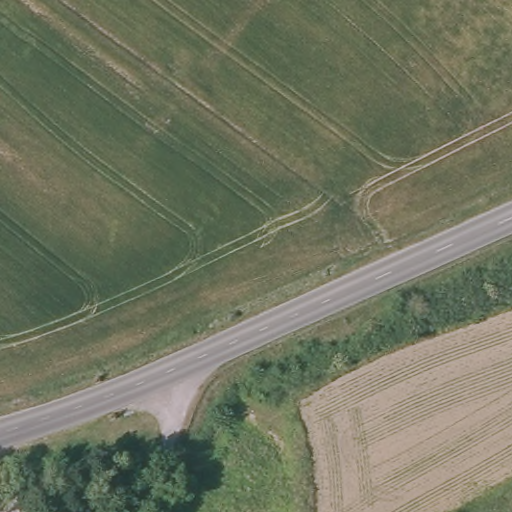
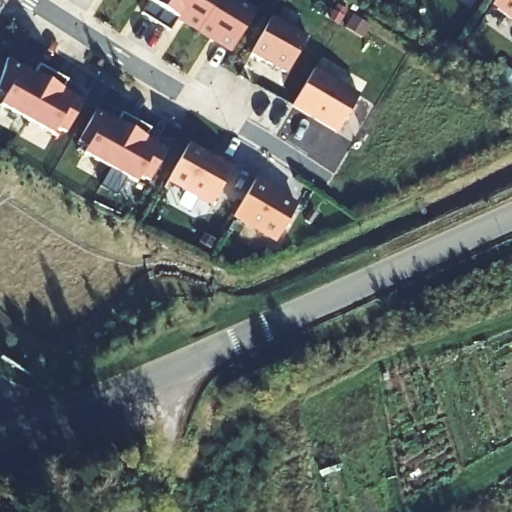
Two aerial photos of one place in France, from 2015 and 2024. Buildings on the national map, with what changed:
new [(259,15),(233,55),(180,22),(172,35),(144,17),(152,4),(146,0),(235,0),(259,15)]
new [(512,19),(496,7),(501,0),(512,0),(512,19)]
new [(310,40),(290,77),(254,57),(275,20),(310,40)]
new [(0,93),(0,91),(9,62),(36,77),(41,67),(70,82),(65,93),(86,105),(70,137),(60,132),(57,137),(3,108),(9,97),(0,93)]
new [(317,72),(362,99),(340,136),(295,109),(317,72)]
new [(139,186),(86,157),(90,150),(81,145),(98,114),(120,126),(125,117),(153,132),(148,142),(170,154),(152,185),(142,180),(139,186)]
new [(235,173),(216,205),(175,182),(192,151),(235,173)]
new [(301,210),(283,242),(241,219),(259,187),(301,210)]
new [(215,242),(210,250),(200,244),(205,235),(215,242)]

